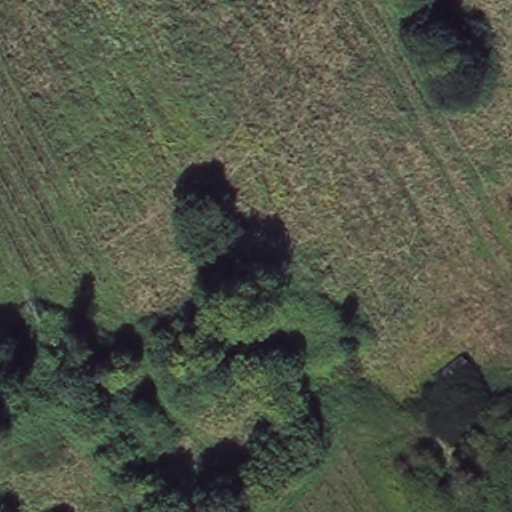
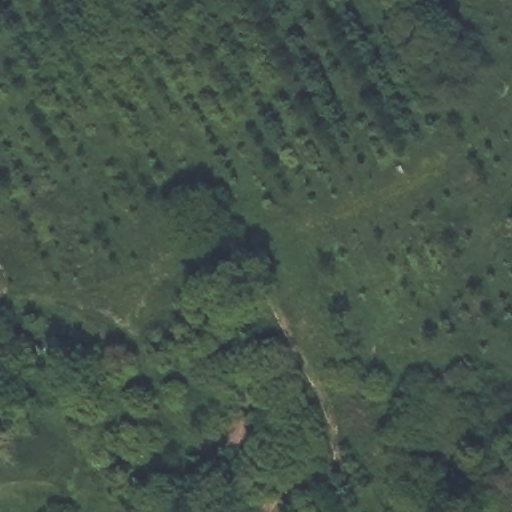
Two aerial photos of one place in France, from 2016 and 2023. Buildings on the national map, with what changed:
unchanged [(478,376),(445,402),(427,376),(460,351),(478,376)]

